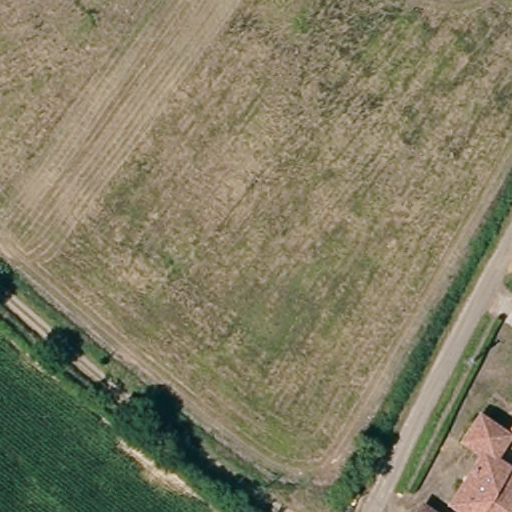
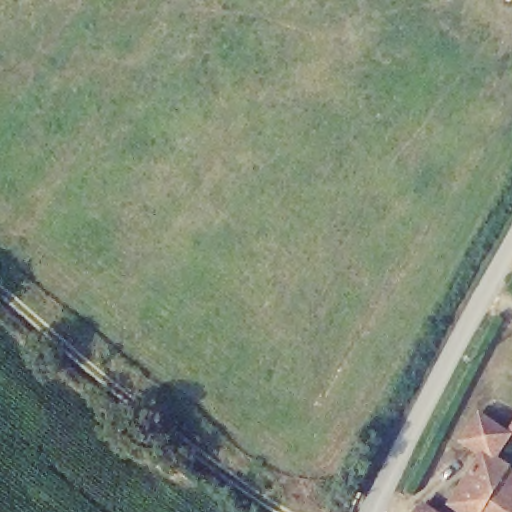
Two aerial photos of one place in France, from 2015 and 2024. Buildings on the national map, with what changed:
unchanged [(512,436),(512,469),(494,460),(493,463),(478,454),(495,427),(512,436)]
unchanged [(493,463),(494,460),(512,469),(512,484),(497,512),(467,512),(465,511),(493,463)]
unchanged [(512,512),(497,512),(512,484),(512,512)]

